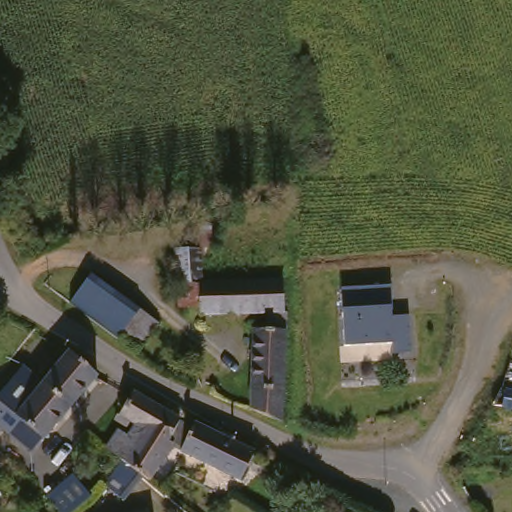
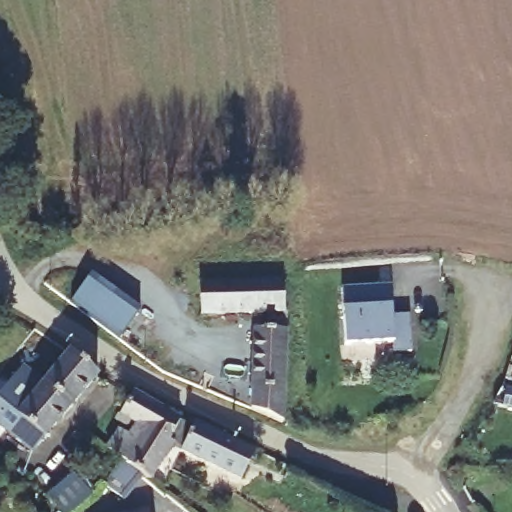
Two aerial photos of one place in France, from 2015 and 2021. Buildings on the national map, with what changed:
unchanged [(292,346),(290,423),(257,409),(262,328),(275,328),(275,312),(208,314),(207,304),(180,305),(180,281),(178,248),(182,248),(205,246),(207,280),(265,279),(291,279),(293,307),(293,309),(292,345),(292,346)]
unchanged [(155,320),(136,347),(59,289),(74,268),(87,277),(90,273),(155,320)]
unchanged [(342,310),(340,285),(390,283),(391,314),(408,313),(411,352),(389,355),(390,344),(343,345),(342,310)]
unchanged [(76,357),(102,379),(75,410),(49,388),(76,357)]
unchanged [(0,391),(21,365),(49,388),(20,423),(12,432),(0,425),(0,391)]
unchanged [(49,441),(37,455),(12,432),(20,423),(49,388),(75,410),(49,441)]
unchanged [(147,424),(140,420),(135,429),(126,423),(145,392),(190,418),(177,438),(159,426),(150,439),(141,433),(147,424)]
unchanged [(237,474),(192,449),(204,426),(207,421),(266,448),(259,462),(249,480),(237,474)]
unchanged [(141,433),(150,439),(159,426),(177,438),(184,442),(161,481),(154,476),(130,459),(118,451),(130,431),(139,437),(141,433)]
unchanged [(57,512),(46,497),(75,471),(93,496),(71,512),(57,512)]
unchanged [(147,512),(139,512),(146,510),(147,512)]

